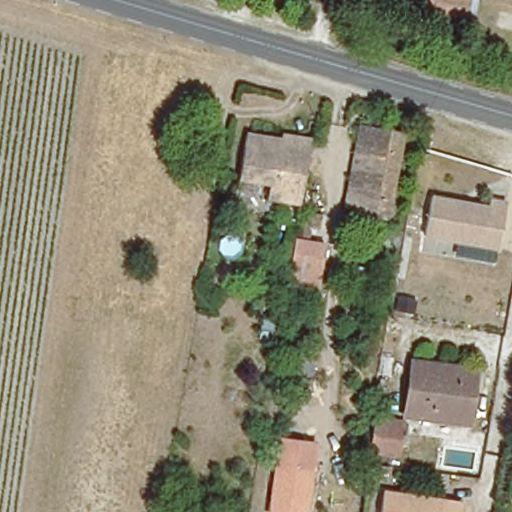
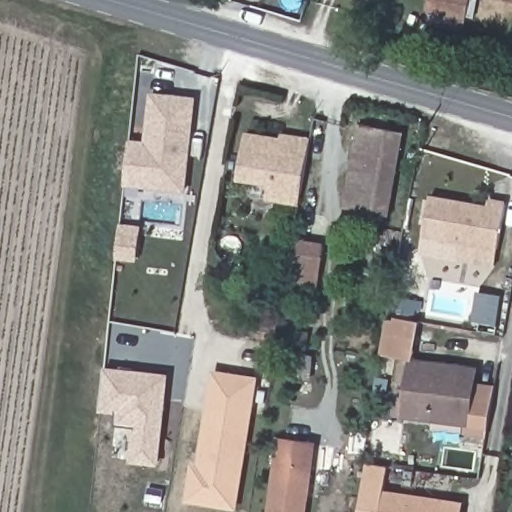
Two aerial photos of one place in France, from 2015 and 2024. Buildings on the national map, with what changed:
unchanged [(431,0),(471,0),(468,14),(467,18),(429,11),(431,0)]
new [(145,141),(150,93),(193,96),(183,189),(124,183),(128,139),(145,141)]
unchanged [(388,216),(345,208),(360,125),(403,133),(388,216)]
unchanged [(283,143),(284,136),(293,137),(310,141),(308,153),(300,206),(268,199),(271,184),(237,178),(245,136),(283,143)]
unchanged [(490,205),(491,197),(508,200),(500,249),(422,236),(432,195),(490,205)]
unchanged [(402,232),(397,259),(380,256),(385,229),(402,232)]
unchanged [(325,256),(321,291),(287,287),(292,252),(325,256)]
new [(394,356),(381,354),(388,315),(418,321),(415,340),(411,359),(394,356)]
unchanged [(476,369),(473,394),(468,425),(404,416),(412,361),(461,367),(476,369)]
new [(129,462),(132,428),(120,422),(115,415),(100,411),(105,367),(170,374),(160,467),(129,462)]
new [(185,503),(191,465),(196,466),(213,371),(260,378),(237,511),(185,503)]
unchanged [(404,423),(400,455),(370,451),(374,419),(404,423)]
unchanged [(315,446),(307,503),(271,499),(278,441),(315,446)]
unchanged [(465,501),(464,512),(381,512),(384,489),(465,501)]

